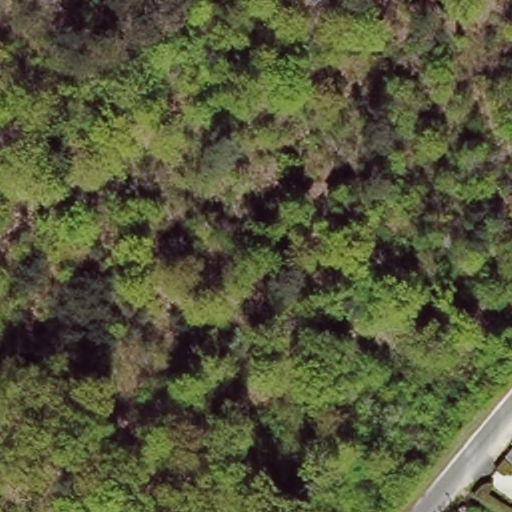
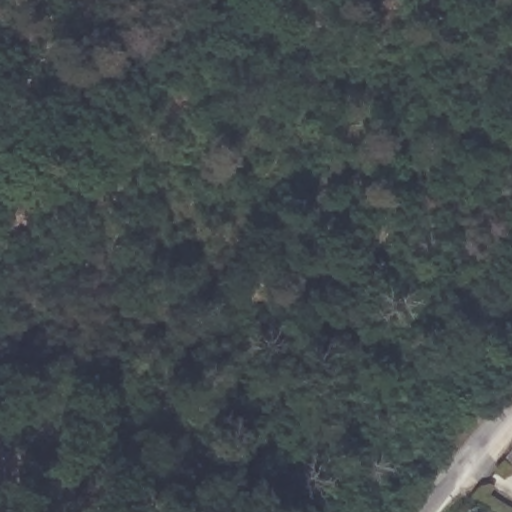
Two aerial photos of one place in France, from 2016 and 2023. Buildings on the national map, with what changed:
unchanged [(512,453),(512,472),(510,474),(492,460),(502,446),(512,453)]

